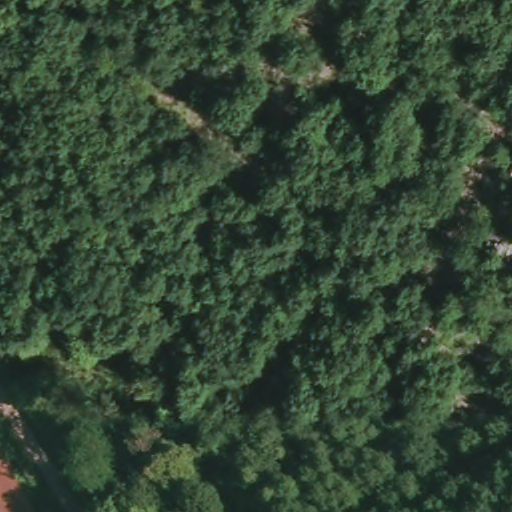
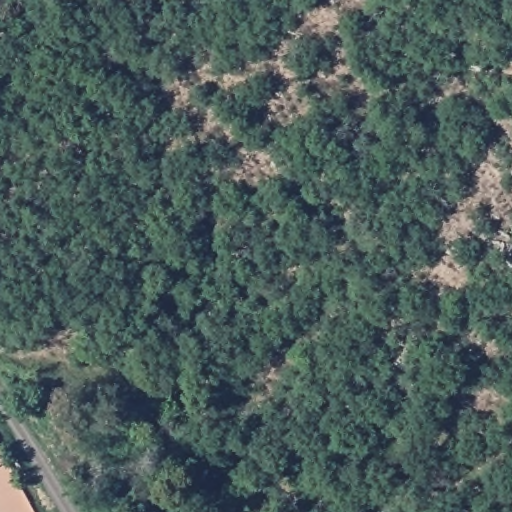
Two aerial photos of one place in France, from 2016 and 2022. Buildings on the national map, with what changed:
unchanged [(7,482),(0,487),(0,472),(7,482)]
unchanged [(7,482),(28,512),(0,512),(0,487),(7,482)]

